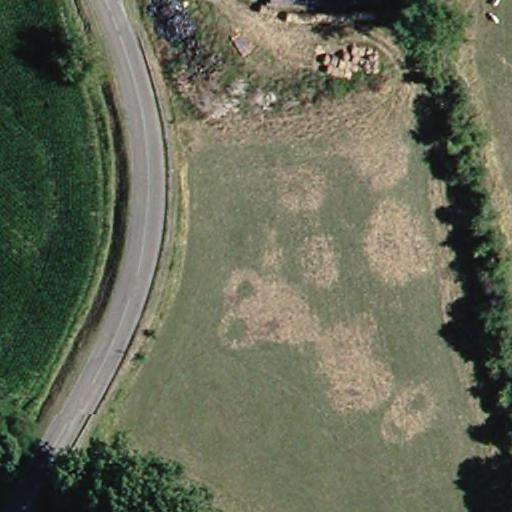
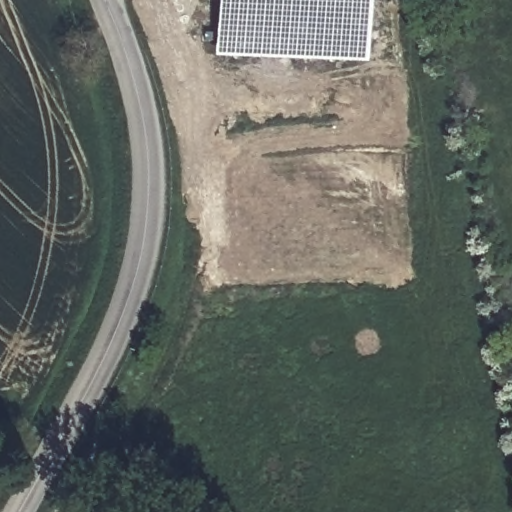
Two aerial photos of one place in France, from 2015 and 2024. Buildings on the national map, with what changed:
new [(214,0),(367,0),(365,62),(212,56),(214,0)]

